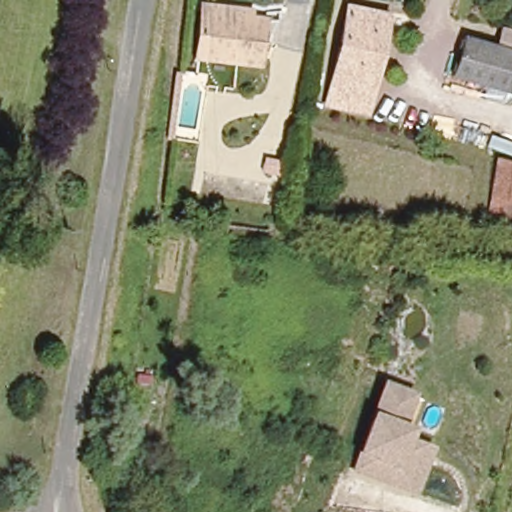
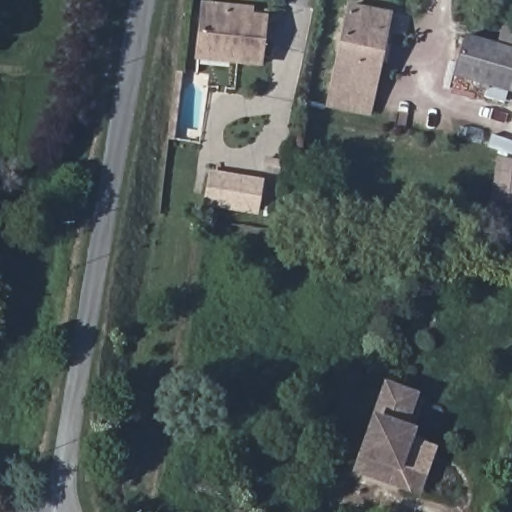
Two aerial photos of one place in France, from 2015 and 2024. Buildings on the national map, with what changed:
unchanged [(263,62),(198,55),(203,7),(203,0),(213,0),(227,1),(249,4),(249,12),(268,15),(263,62)]
unchanged [(369,104),(330,96),(348,10),(387,20),(369,104)]
unchanged [(504,84),(454,70),(464,31),(512,45),(512,86),(504,84)]
unchanged [(504,214),(493,212),(489,212),(495,157),(509,160),(512,160),(512,215),(504,214)]
new [(205,205),(210,171),(264,177),(259,213),(205,205)]
unchanged [(404,445),(434,455),(421,493),(373,477),(364,461),(387,394),(398,398),(408,401),(402,420),(398,432),(404,445)]

